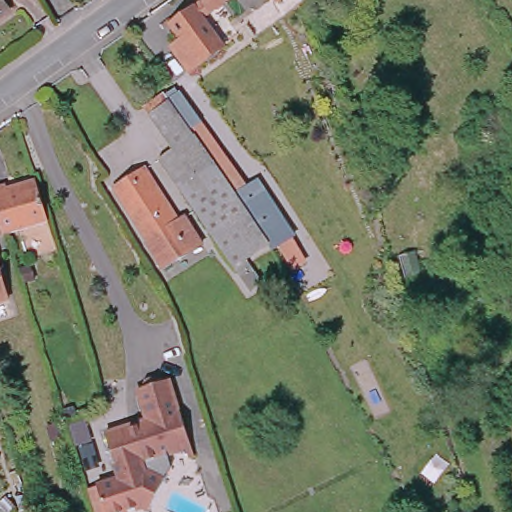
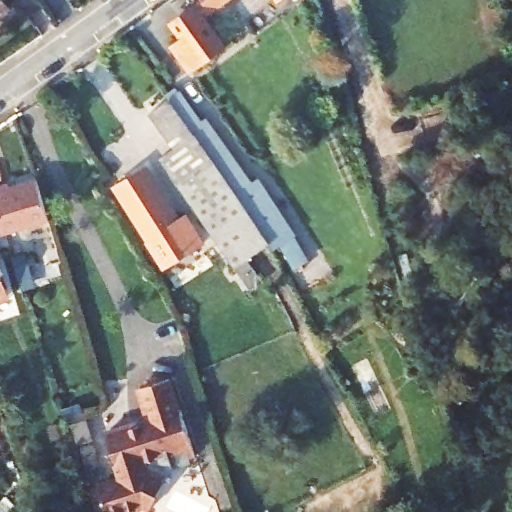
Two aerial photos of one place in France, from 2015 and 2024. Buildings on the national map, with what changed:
unchanged [(216,2),(206,9),(210,15),(227,39),(192,64),(176,40),(186,33),(175,18),(197,0),(224,0),(217,4),(216,2)]
unchanged [(0,11),(0,6),(2,9),(0,11)]
unchanged [(182,183),(181,184),(162,157),(176,147),(152,113),(172,99),(255,215),(249,220),(245,214),(219,233),(182,183)]
unchanged [(142,164),(177,215),(180,213),(198,239),(165,263),(147,236),(150,234),(113,184),(142,164)]
unchanged [(9,182),(36,174),(49,214),(7,228),(0,204),(0,178),(7,176),(9,182)]
unchanged [(267,177),(289,210),(306,235),(300,240),(312,259),(296,267),(272,224),(272,223),(250,188),(250,185),(267,177)]
unchanged [(0,230),(0,204),(7,228),(0,230)]
unchanged [(242,264),(219,233),(245,214),(249,220),(255,215),(273,242),(242,264)]
unchanged [(0,266),(0,255),(3,265),(0,266)]
unchanged [(0,291),(0,279),(4,289),(0,291)]
unchanged [(102,424),(145,411),(137,381),(166,372),(175,402),(184,400),(194,436),(138,453),(141,462),(116,469),(102,424)]
unchanged [(196,459),(190,460),(187,451),(169,457),(172,469),(167,479),(149,512),(145,512),(142,511),(139,512),(94,512),(87,491),(99,487),(97,483),(117,478),(116,469),(141,462),(138,453),(194,436),(196,459)]

